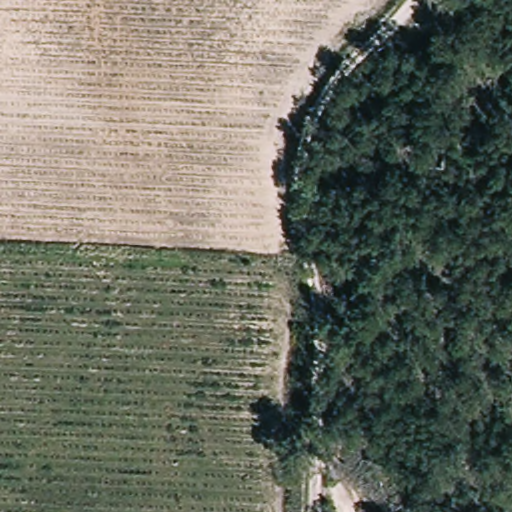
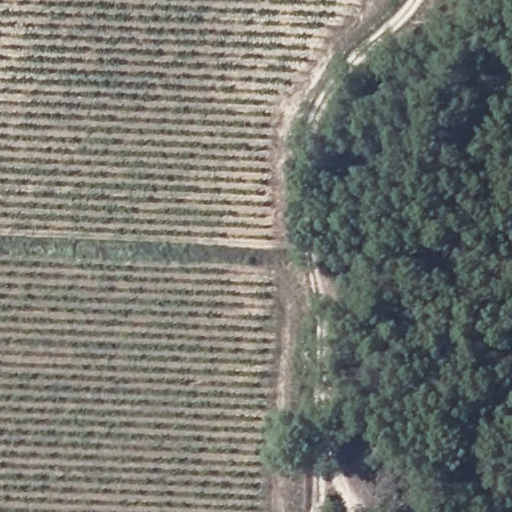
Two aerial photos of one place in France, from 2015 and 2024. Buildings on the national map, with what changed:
unchanged [(438,178),(464,178),(464,204),(438,205),(438,178)]

